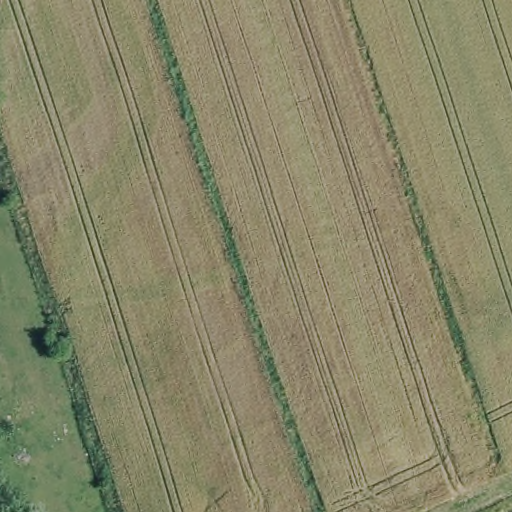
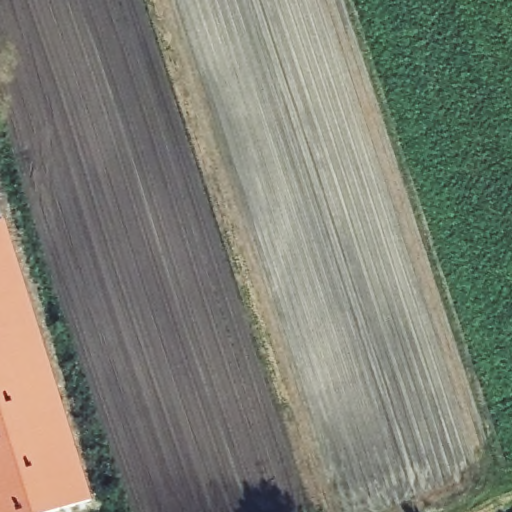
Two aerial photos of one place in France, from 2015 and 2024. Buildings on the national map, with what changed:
new [(86,503),(56,512),(0,512),(0,224),(86,503)]

